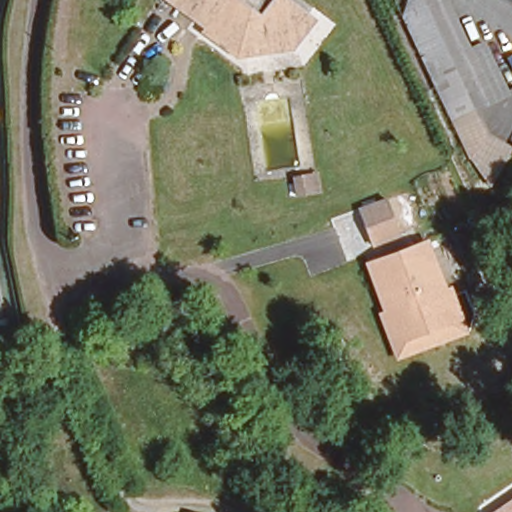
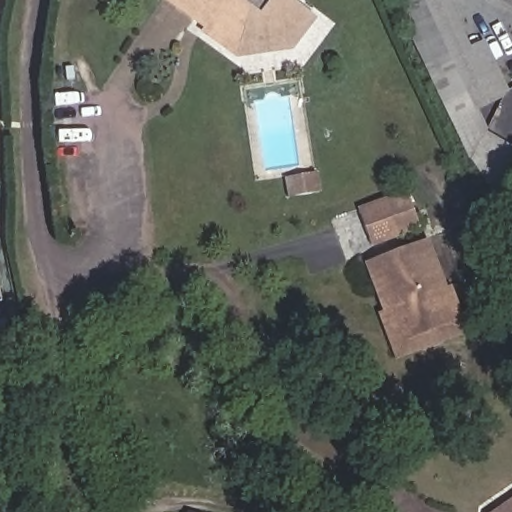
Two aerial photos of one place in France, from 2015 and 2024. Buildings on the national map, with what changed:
unchanged [(282,39),(210,46),(172,0),(292,0),(307,16),(282,39)]
unchanged [(487,190),(397,0),(428,0),(478,112),(486,128),(512,143),(512,145),(487,190)]
unchanged [(448,0),(468,46),(485,40),(512,97),(478,112),(428,0),(448,0)]
unchanged [(292,197),(288,173),(315,165),(317,187),(292,197)]
unchanged [(357,208),(402,194),(416,231),(371,246),(357,208)]
unchanged [(397,361),(377,313),(383,311),(365,264),(431,239),(449,287),(456,285),(472,335),(397,361)]
unchanged [(512,491),(512,512),(485,512),(512,491)]
unchanged [(187,507),(201,512),(186,512),(187,507)]

